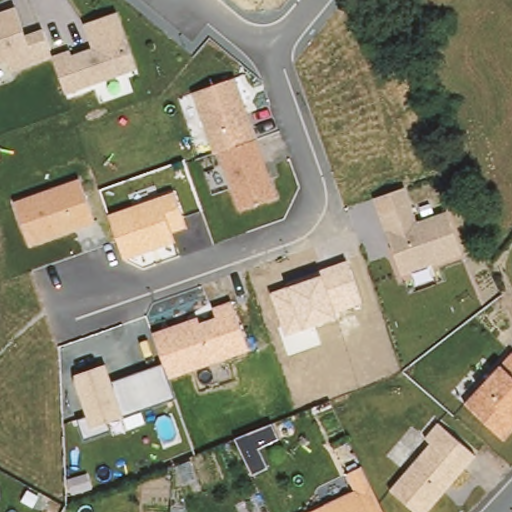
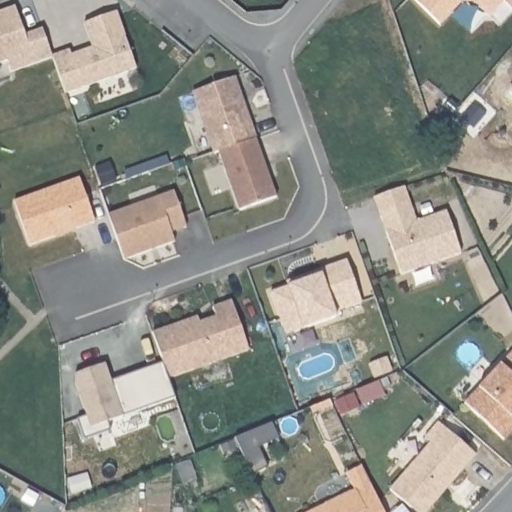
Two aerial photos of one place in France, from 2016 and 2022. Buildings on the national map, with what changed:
new [(512,9),(504,0),(489,16),(476,4),(459,3),(440,24),(415,0),(512,0),(512,9)]
unchanged [(24,34),(42,29),(52,56),(71,50),(73,54),(90,48),(82,22),(119,11),(138,70),(63,96),(51,60),(10,74),(6,60),(0,62),(0,12),(14,7),(24,34)]
unchanged [(236,78),(277,198),(238,211),(217,153),(212,154),(192,93),(236,78)]
unchanged [(93,223),(28,244),(14,200),(79,179),(93,223)]
unchanged [(404,187),(415,221),(447,210),(462,253),(399,274),(372,198),(404,187)]
unchanged [(109,215),(174,191),(187,228),(171,232),(175,241),(124,259),(109,215)]
unchanged [(272,293),(289,285),(322,274),(320,269),(349,260),(362,305),(334,312),(337,319),(303,329),(286,335),(272,293)]
unchanged [(152,332),(197,316),(198,320),(199,323),(216,317),(212,307),(232,301),(248,351),(168,377),(163,363),(152,332)]
unchanged [(503,366),(512,357),(512,436),(507,441),(464,406),(480,390),(502,367),(503,366)]
unchanged [(163,363),(176,399),(107,423),(110,430),(85,438),(78,418),(85,416),(73,380),(75,373),(106,364),(112,382),(163,363)]
unchanged [(236,439),(272,423),(278,439),(260,448),(268,468),(253,474),(236,439)]
unchanged [(437,425),(476,456),(430,512),(418,512),(393,490),(431,444),(423,439),(437,425)]
unchanged [(364,469),(384,512),(313,512),(354,493),(346,477),(364,469)]

